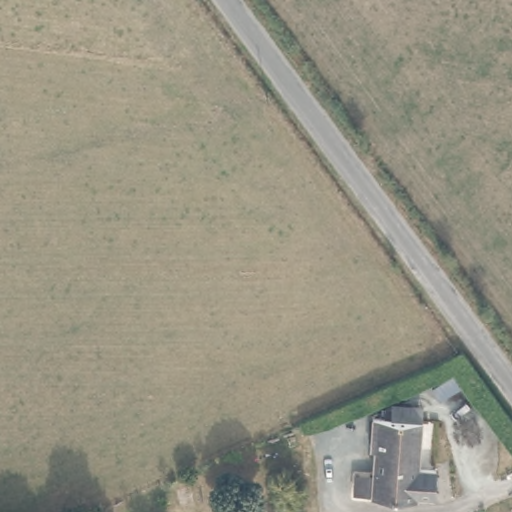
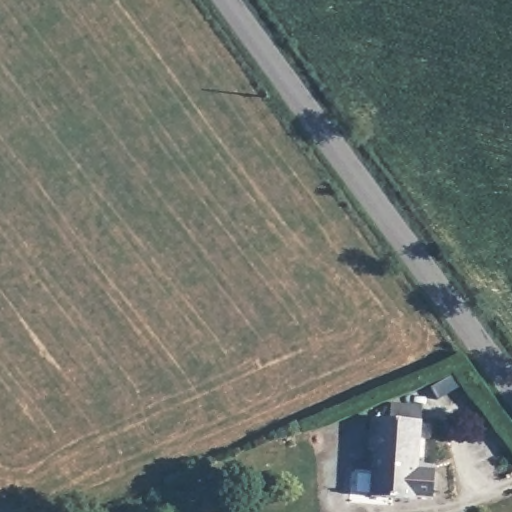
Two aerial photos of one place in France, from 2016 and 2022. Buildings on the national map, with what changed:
unchanged [(355,472),(377,471),(378,448),(375,445),(377,421),(395,421),(395,406),(425,407),(425,422),(424,466),(438,467),(437,496),(382,496),(376,494),(356,493),(355,472)]

